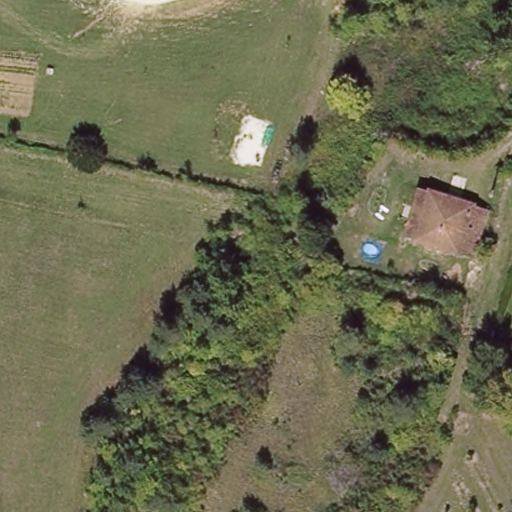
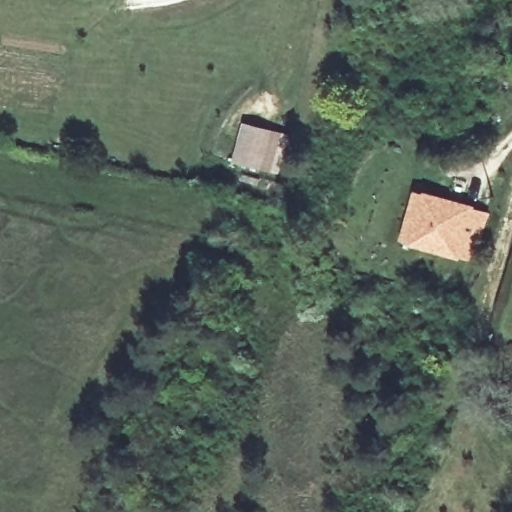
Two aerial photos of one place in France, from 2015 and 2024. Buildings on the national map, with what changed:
new [(290,134),(277,173),(235,161),(245,122),(290,134)]
unchanged [(402,248),(406,236),(417,200),(476,217),(462,266),(402,248)]

